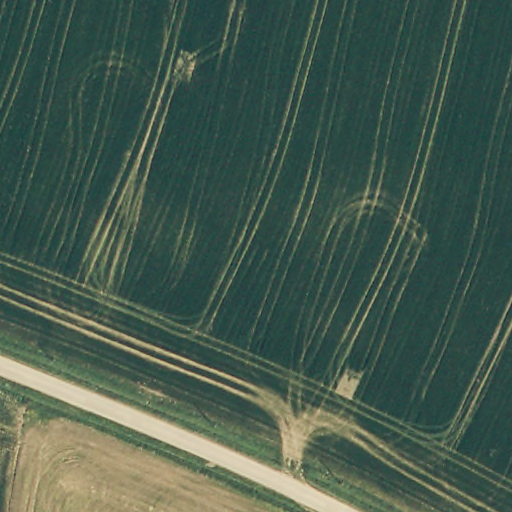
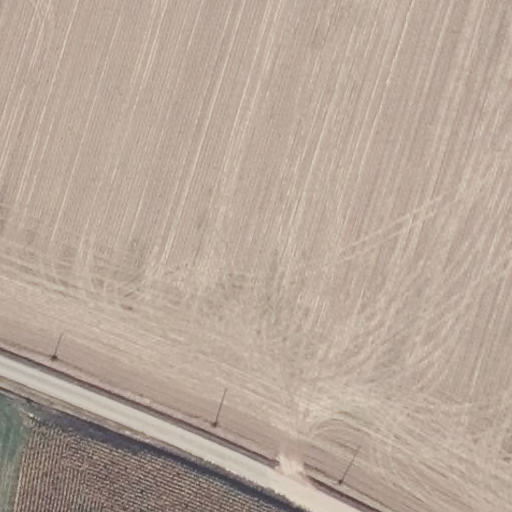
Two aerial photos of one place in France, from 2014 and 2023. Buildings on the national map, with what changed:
[]

